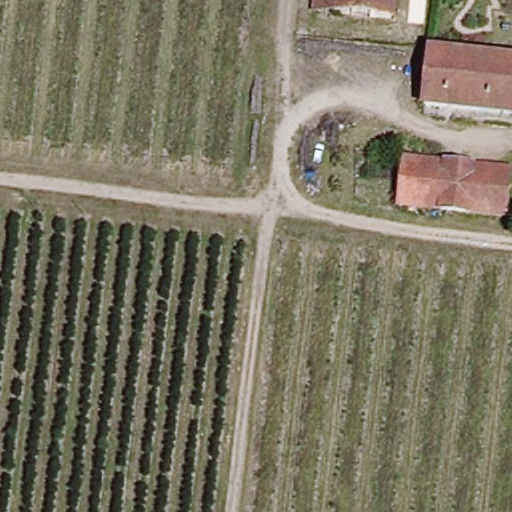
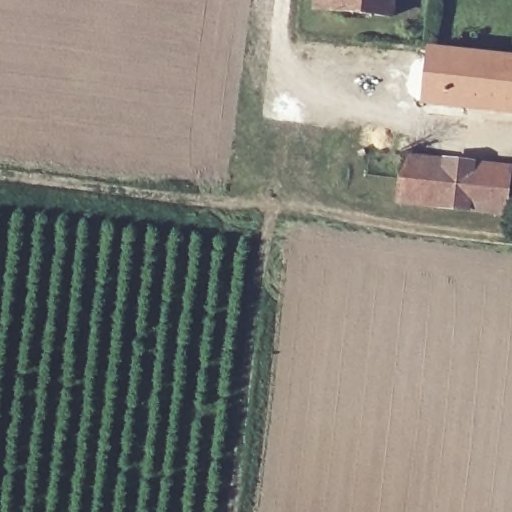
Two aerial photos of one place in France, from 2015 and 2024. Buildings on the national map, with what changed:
unchanged [(312,11),(313,0),(335,0),(333,12),(312,11)]
unchanged [(335,0),(394,0),(392,16),(333,12),(335,0)]
unchanged [(512,111),(511,116),(425,108),(426,52),(512,60),(512,111)]
unchanged [(509,169),(504,215),(394,206),(398,161),(509,169)]

